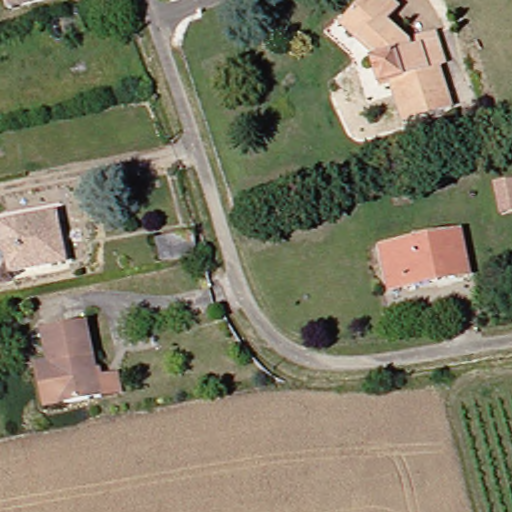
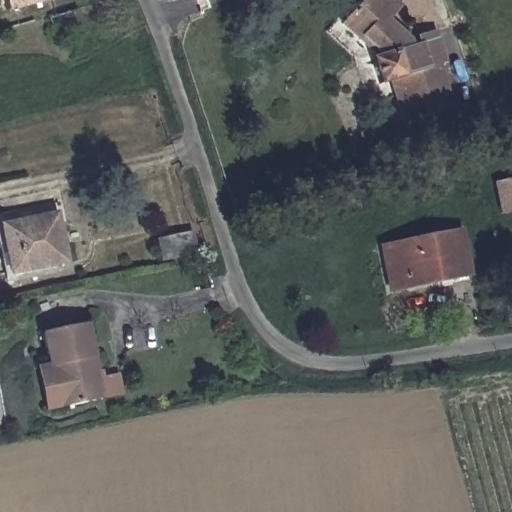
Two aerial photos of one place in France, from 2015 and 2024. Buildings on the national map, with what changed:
unchanged [(52,5),(2,17),(0,9),(0,0),(51,0),(52,5)]
unchanged [(376,87),(369,61),(374,60),(356,42),(339,26),(353,11),(363,0),(389,0),(394,5),(399,10),(385,24),(406,41),(415,39),(436,34),(444,64),(436,65),(448,110),(403,121),(397,123),(386,85),(376,87)]
unchanged [(512,177),(512,215),(502,217),(494,180),(512,177)]
unchanged [(60,263),(9,275),(0,239),(0,227),(49,216),(60,263)]
unchanged [(386,290),(377,246),(453,231),(462,267),(464,274),(439,279),(386,290)]
unchanged [(194,238),(198,254),(170,260),(166,244),(194,238)]
unchanged [(44,363),(39,335),(89,325),(95,372),(117,368),(121,391),(62,402),(50,405),(44,363)]

